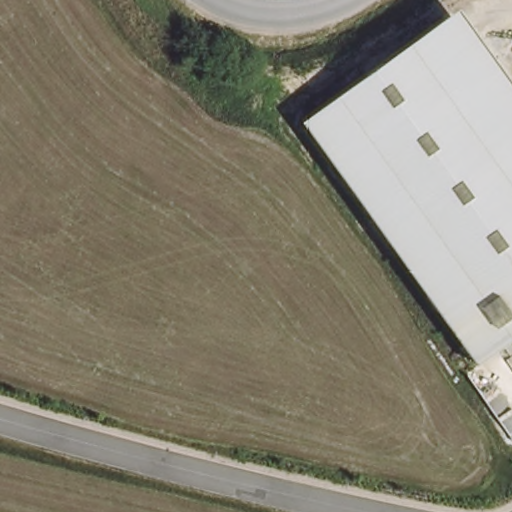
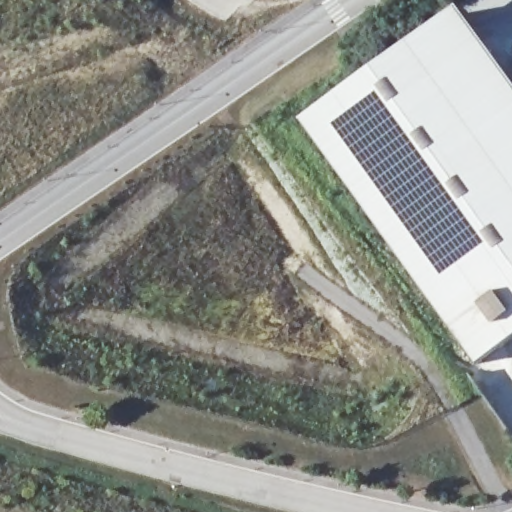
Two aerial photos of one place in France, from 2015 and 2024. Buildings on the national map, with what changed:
unchanged [(457,16),(512,94),(512,346),(489,362),(314,118),(457,16)]

